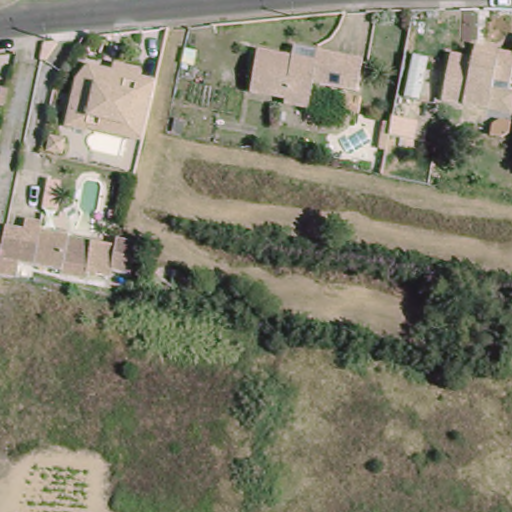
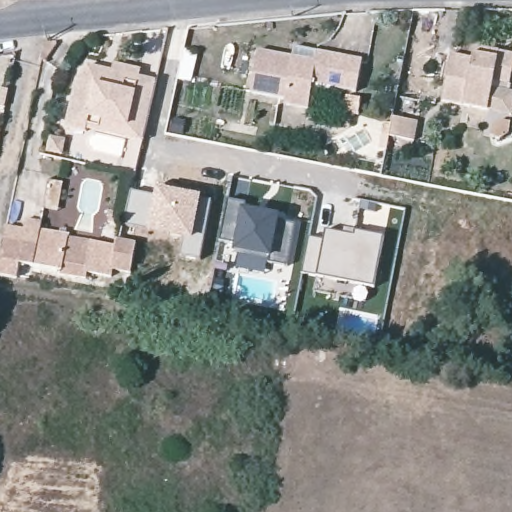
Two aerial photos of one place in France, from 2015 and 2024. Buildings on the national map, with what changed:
unchanged [(467,66),(467,62),(468,54),(492,57),(508,60),(512,42),(512,75),(506,74),(503,90),(485,88),(479,116),(436,107),(444,62),(467,66)]
unchanged [(284,110),(284,105),(280,104),(250,99),(258,57),(290,62),(292,52),(315,57),(360,66),(353,97),(309,89),(304,113),(284,110)]
unchanged [(89,72),(101,75),(112,77),(151,87),(141,136),(90,124),(87,138),(67,134),(77,87),(89,72)]
unchanged [(351,119),(342,117),(345,102),(359,105),(356,120),(351,119)]
unchanged [(391,121),(388,135),(380,134),(383,120),(391,121)]
new [(146,234),(147,231),(124,226),(131,190),(154,195),(156,187),(203,196),(196,234),(204,236),(199,260),(181,256),(185,241),(146,234)]
new [(233,252),(234,245),(221,242),(229,201),(283,212),(282,217),(299,221),(288,266),(272,262),(267,262),(264,273),(235,267),(238,254),(233,252)]
unchanged [(120,240),(136,244),(131,268),(112,264),(110,278),(86,275),(85,278),(60,273),(60,271),(32,266),(20,263),(17,277),(0,274),(0,256),(6,227),(27,230),(28,220),(39,221),(37,232),(66,237),(115,245),(116,240),(120,240)]
new [(324,241),(326,230),(343,235),(345,229),(383,237),(374,287),(303,275),(310,239),(324,241)]
demolished [(176,272),(170,300),(150,296),(156,267),(176,272)]

